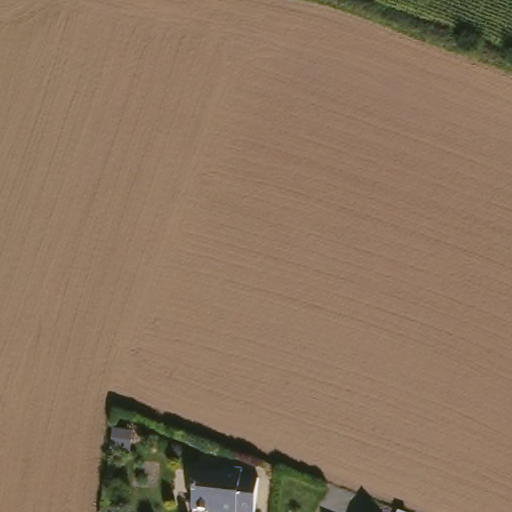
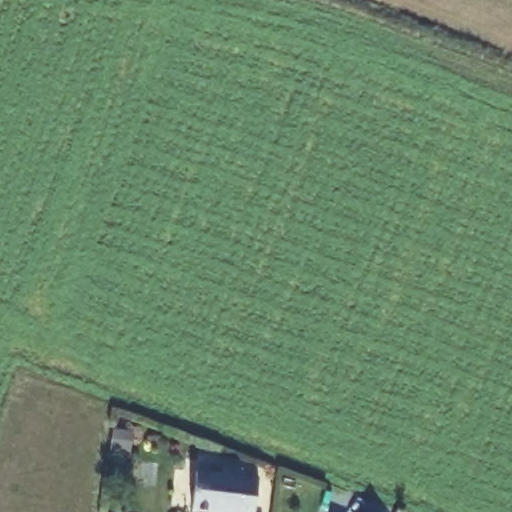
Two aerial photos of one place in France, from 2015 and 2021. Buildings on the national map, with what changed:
unchanged [(223,477),(224,471),(243,472),(242,478),(260,480),(256,512),(194,512),(197,474),(223,477)]

